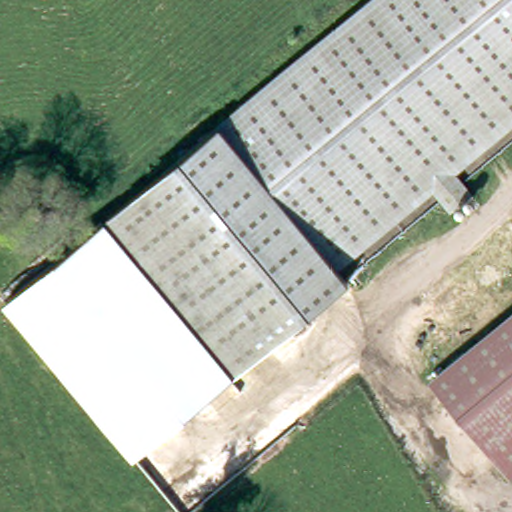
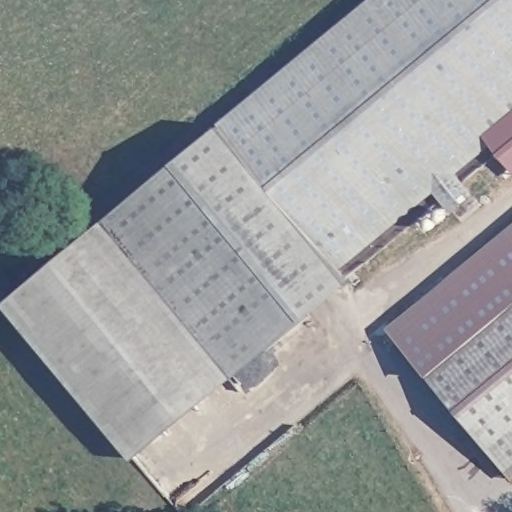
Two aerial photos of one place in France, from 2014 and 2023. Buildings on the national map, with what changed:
unchanged [(472,191),(452,209),(427,178),(329,260),(348,284),(229,381),(99,220),(364,0),(512,0),(512,108),(465,147),(449,161),(472,191)]
new [(484,132),(512,108),(512,168),(484,132)]
unchanged [(229,381),(184,412),(187,416),(133,459),(3,300),(99,220),(229,381)]
new [(387,330),(512,226),(512,309),(428,379),(387,330)]
unchanged [(510,478),(428,379),(512,309),(512,476),(510,478)]

